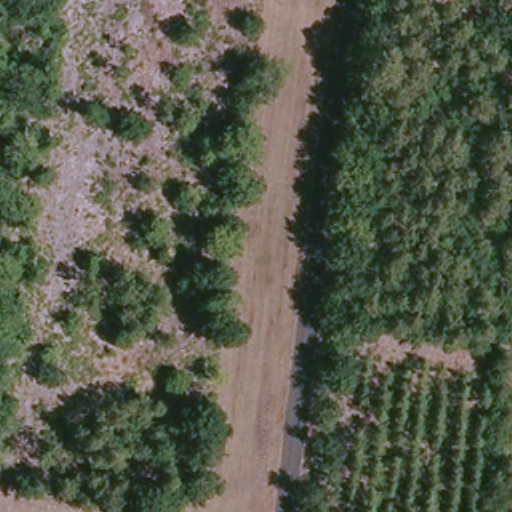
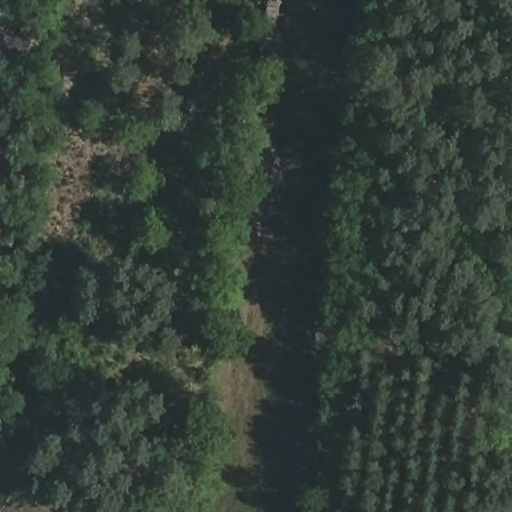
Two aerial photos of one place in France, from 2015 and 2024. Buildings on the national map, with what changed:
unchanged [(326,388),(357,395),(352,411),(324,406),(326,388)]

